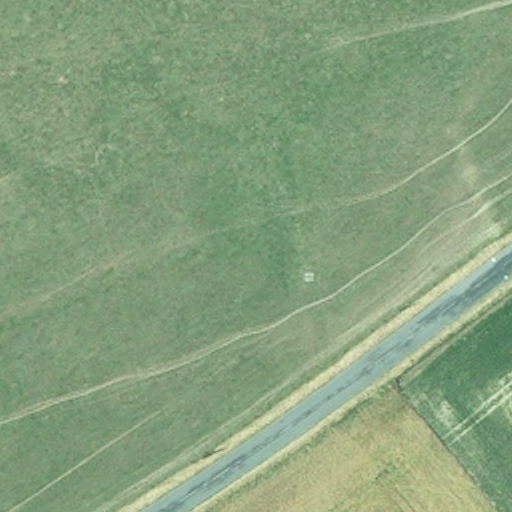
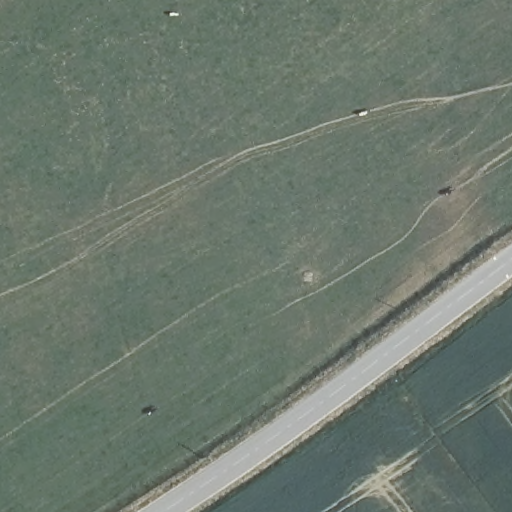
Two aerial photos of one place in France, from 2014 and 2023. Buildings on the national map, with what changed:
[]

